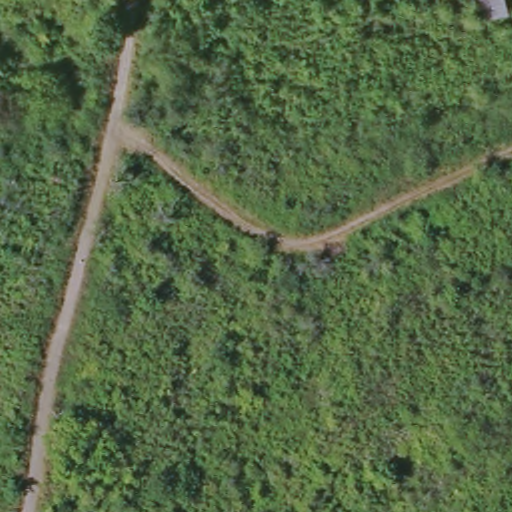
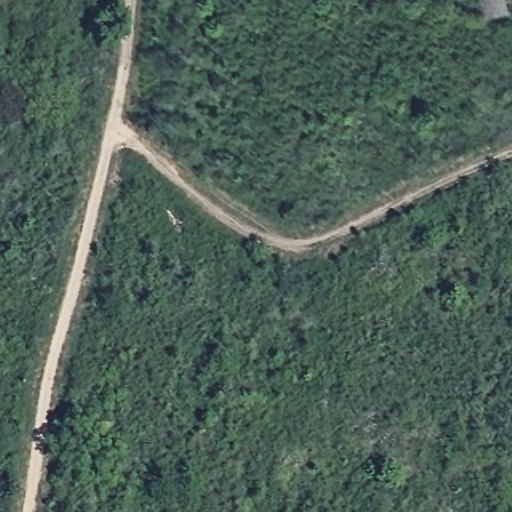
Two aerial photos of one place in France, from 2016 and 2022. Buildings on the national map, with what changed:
unchanged [(482,0),(509,0),(512,11),(512,13),(487,21),(482,0)]

